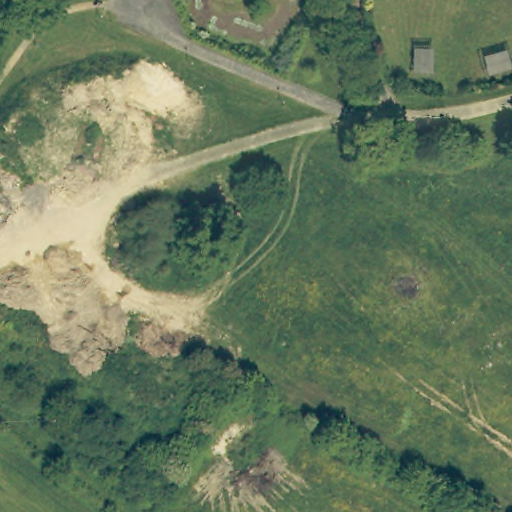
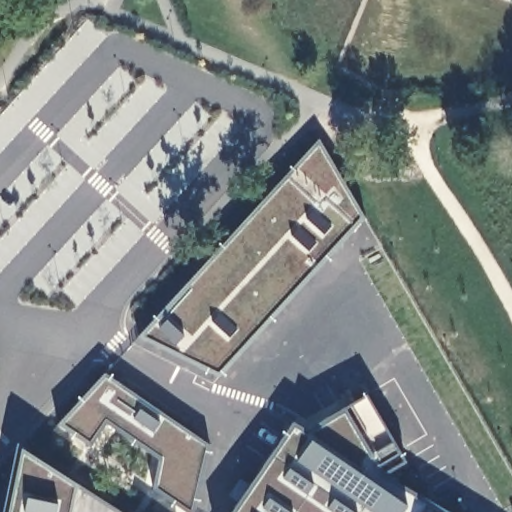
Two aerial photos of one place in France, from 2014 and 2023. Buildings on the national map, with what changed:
new [(221,374),(141,337),(319,142),(364,218),(221,374)]
new [(188,512),(155,491),(161,460),(106,423),(91,445),(61,425),(108,375),(209,445),(195,512),(188,512)]
new [(307,430),(365,395),(406,462),(384,476),(445,512),(231,512),(292,422),(307,430)]
new [(21,448),(118,512),(1,512),(17,445),(21,448)]

